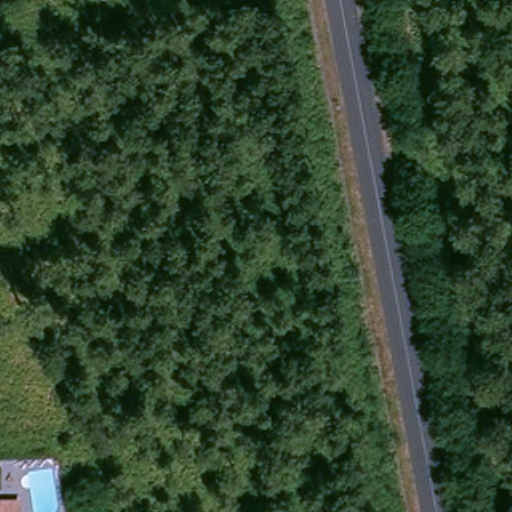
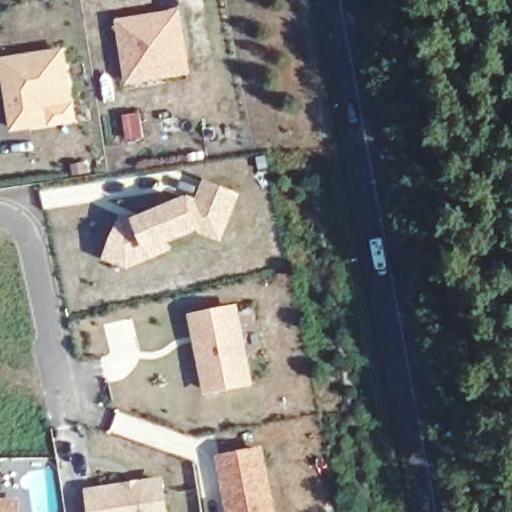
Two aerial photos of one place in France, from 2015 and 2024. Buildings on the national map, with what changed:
new [(180,9),(190,74),(125,85),(115,19),(180,9)]
new [(65,48),(74,103),(45,108),(48,126),(9,133),(0,74),(0,57),(65,48)]
new [(139,112),(144,138),(125,141),(121,114),(139,112)]
new [(118,214),(130,217),(185,194),(190,194),(196,197),(203,178),(241,193),(221,242),(198,233),(198,232),(170,244),(173,249),(126,269),(99,259),(118,214)]
new [(188,314),(239,304),(254,386),(204,396),(188,314)]
new [(263,446),(276,512),(226,512),(216,456),(263,446)]
new [(163,476),(169,512),(88,512),(85,489),(163,476)]
unchanged [(13,502),(13,512),(0,512),(0,502),(13,502)]

